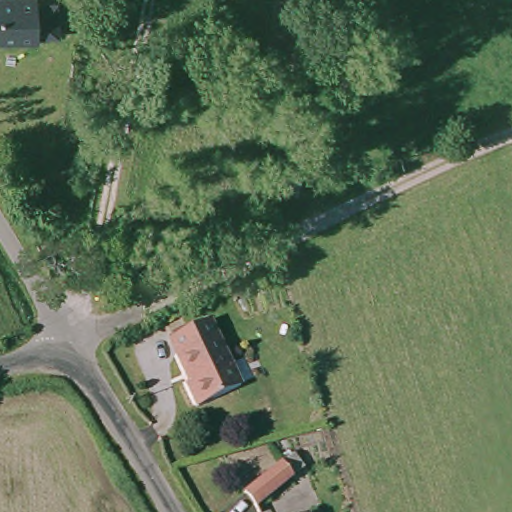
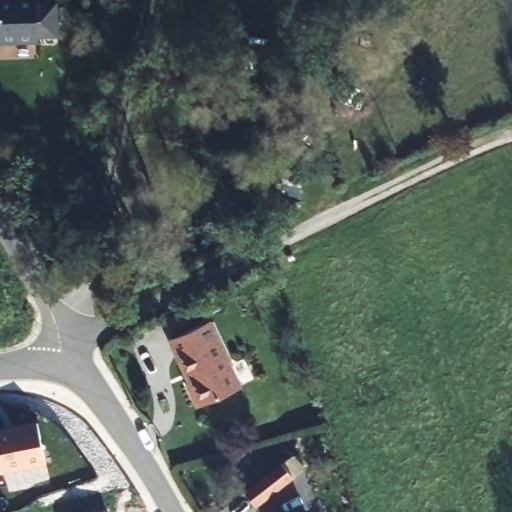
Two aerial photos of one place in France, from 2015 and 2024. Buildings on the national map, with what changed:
unchanged [(0,40),(0,0),(59,0),(64,38),(0,40)]
unchanged [(240,385),(204,402),(193,379),(185,383),(165,339),(207,320),(240,385)]
new [(46,463),(0,473),(0,429),(36,421),(46,463)]
unchanged [(288,489),(254,512),(244,512),(236,498),(276,471),(288,489)]
unchanged [(299,512),(308,510),(308,512),(299,512)]

